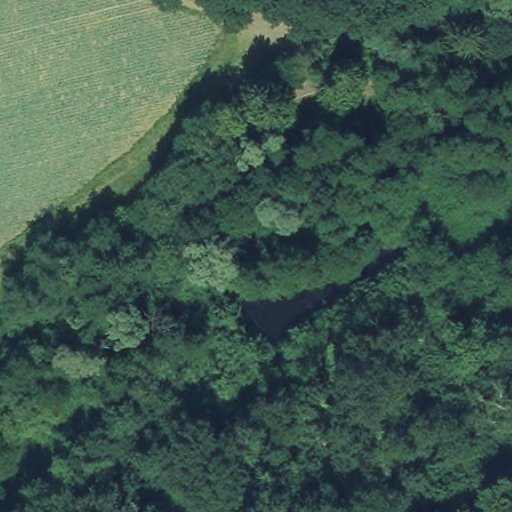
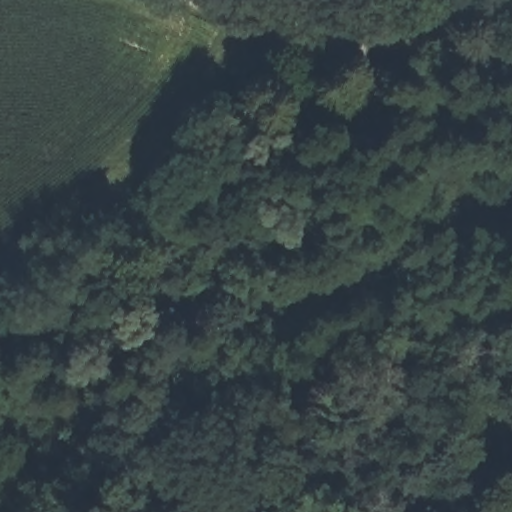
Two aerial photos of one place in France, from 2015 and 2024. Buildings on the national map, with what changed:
unchanged [(283,79),(310,68),(316,89),(288,100),(283,79)]

